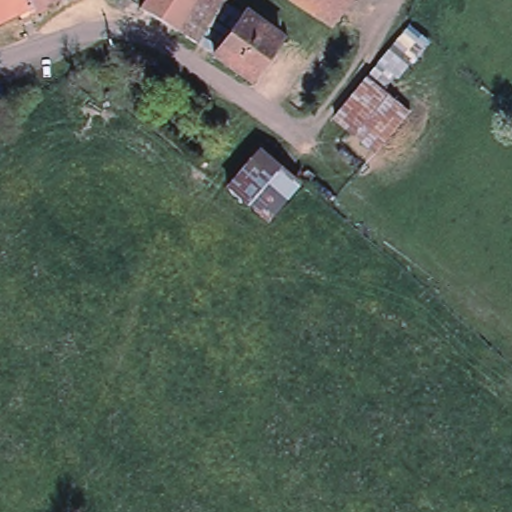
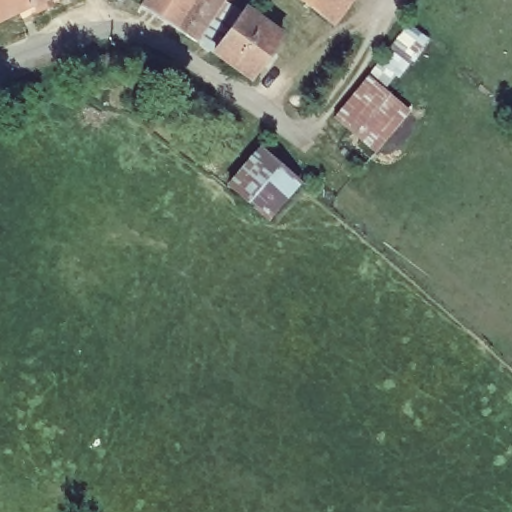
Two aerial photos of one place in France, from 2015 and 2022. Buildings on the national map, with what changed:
unchanged [(0,0),(38,0),(0,18),(0,0)]
unchanged [(140,6),(145,0),(195,0),(177,30),(140,6)]
unchanged [(177,30),(195,0),(218,0),(193,40),(177,30)]
unchanged [(193,40),(218,0),(234,0),(246,9),(214,53),(193,40)]
unchanged [(302,0),(354,0),(336,24),(302,0)]
unchanged [(283,35),(250,80),(214,53),(246,9),(283,35)]
unchanged [(429,40),(396,78),(377,64),(410,23),(429,40)]
unchanged [(410,111),(376,153),(335,118),(369,76),(410,111)]
unchanged [(300,182),(267,220),(228,187),(260,149),(300,182)]

